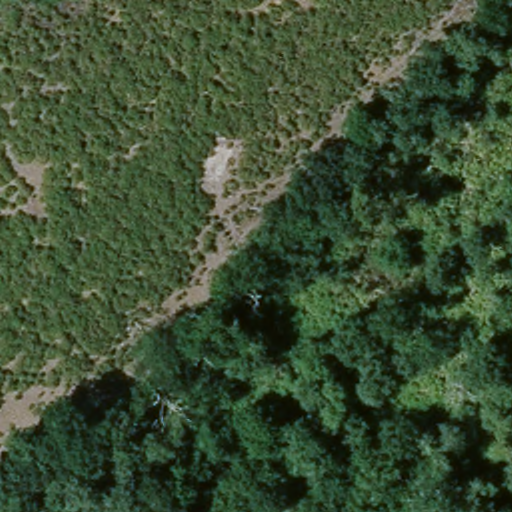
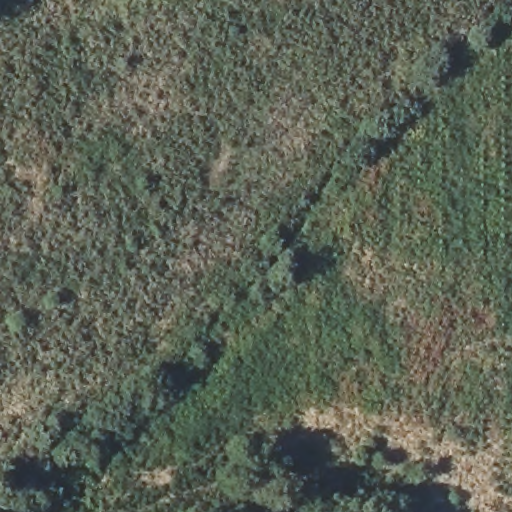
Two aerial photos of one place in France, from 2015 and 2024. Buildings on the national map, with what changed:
[]

